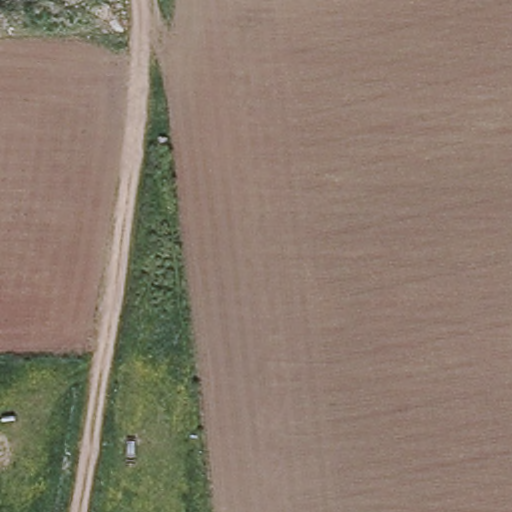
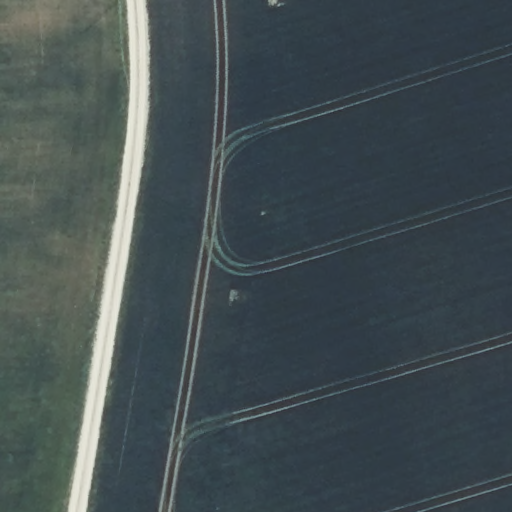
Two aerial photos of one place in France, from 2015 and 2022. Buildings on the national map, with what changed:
[]

